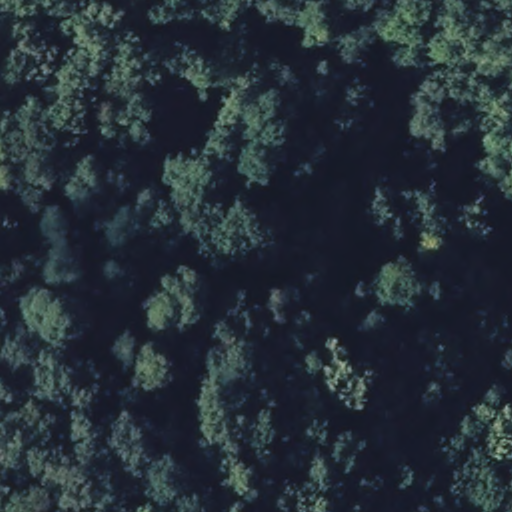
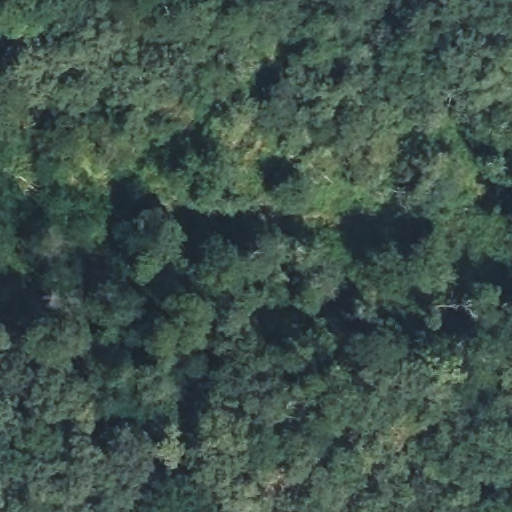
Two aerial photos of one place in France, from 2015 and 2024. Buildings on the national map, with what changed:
[]

